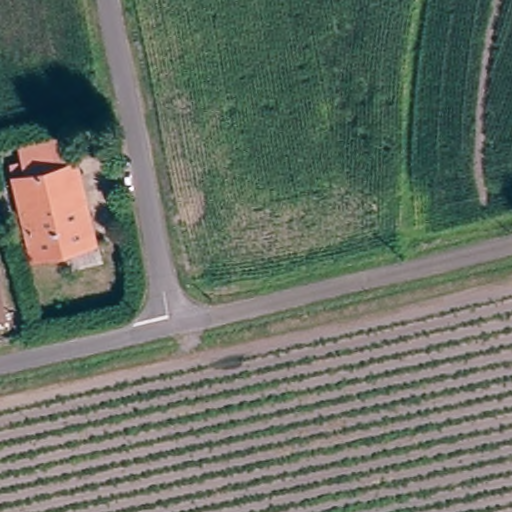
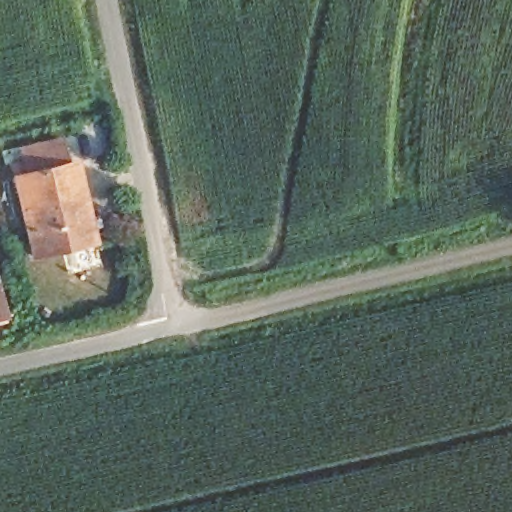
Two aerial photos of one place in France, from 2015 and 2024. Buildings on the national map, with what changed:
unchanged [(67,176),(75,175),(92,252),(32,267),(10,179),(21,175),(17,159),(61,149),(67,176)]
unchanged [(3,292),(9,319),(0,321),(0,285),(2,285),(3,292)]

